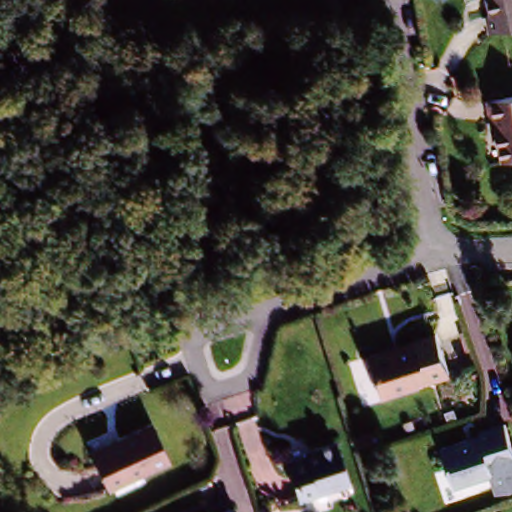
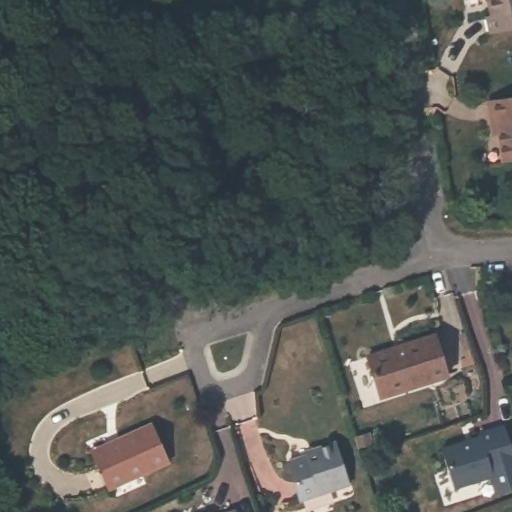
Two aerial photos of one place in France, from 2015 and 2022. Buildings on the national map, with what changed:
unchanged [(493,16),(490,0),(512,0),(512,30),(492,35),(488,18),(493,16)]
unchanged [(512,162),(503,164),(499,136),(494,137),(492,123),(488,105),(512,101),(512,162)]
unchanged [(368,359),(435,337),(448,377),(381,399),(368,359)]
unchanged [(485,433),(510,425),(512,430),(512,489),(503,492),(498,476),(460,488),(447,448),(485,436),(485,433)]
unchanged [(90,458),(117,446),(152,430),(169,469),(107,496),(92,462),(90,458)]
unchanged [(313,459),(312,455),(332,449),(345,490),(297,506),(285,468),(313,459)]
unchanged [(235,508),(236,512),(222,512),(235,508)]

